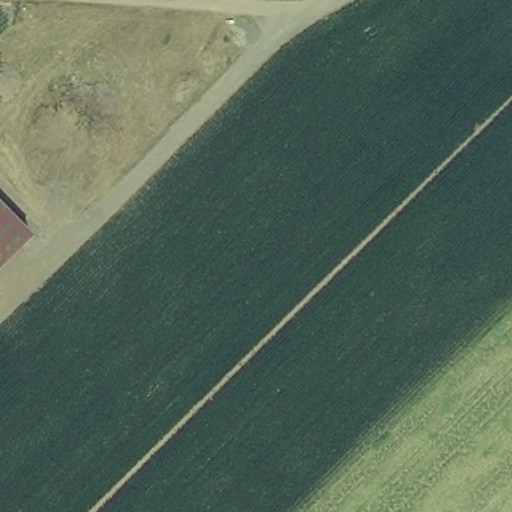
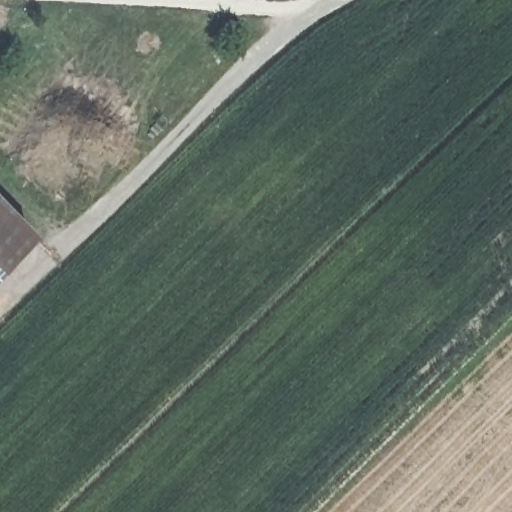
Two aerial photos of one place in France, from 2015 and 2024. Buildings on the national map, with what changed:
unchanged [(33,237),(0,269),(0,204),(33,237)]

